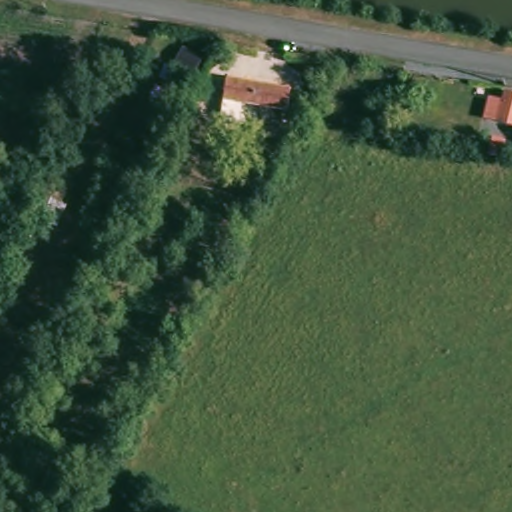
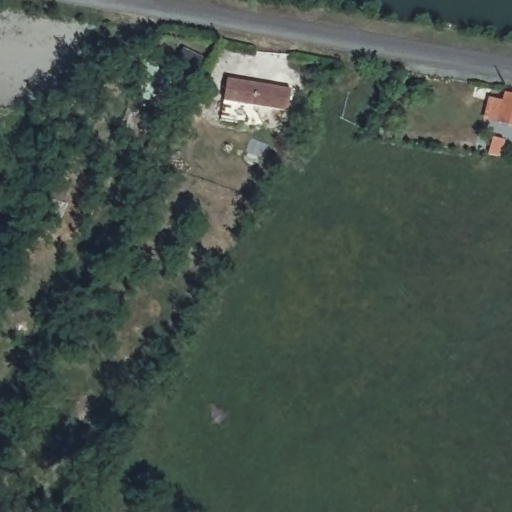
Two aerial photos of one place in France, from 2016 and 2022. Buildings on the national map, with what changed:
unchanged [(290,116),(260,111),(251,110),(230,105),(224,104),(227,81),(262,87),(292,94),(290,116)]
unchanged [(503,97),(512,102),(512,120),(507,129),(491,121),(503,97)]

